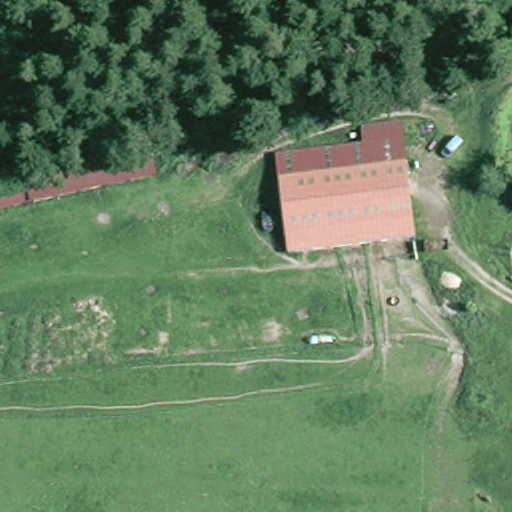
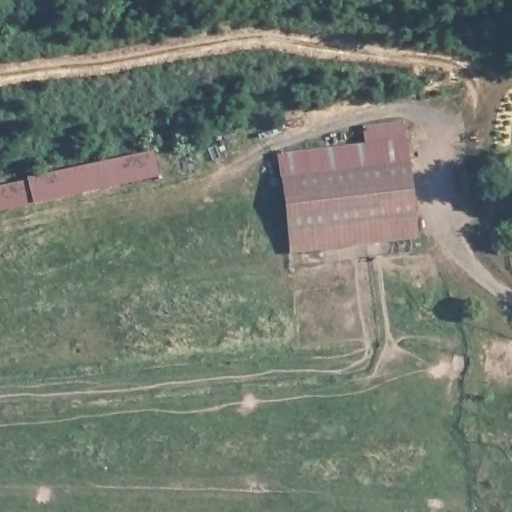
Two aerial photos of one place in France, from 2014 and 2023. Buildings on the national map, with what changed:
unchanged [(290,253),(278,154),(365,143),(363,126),(405,123),(416,238),(290,253)]
new [(0,184),(27,177),(152,150),(158,175),(0,210),(0,184)]

